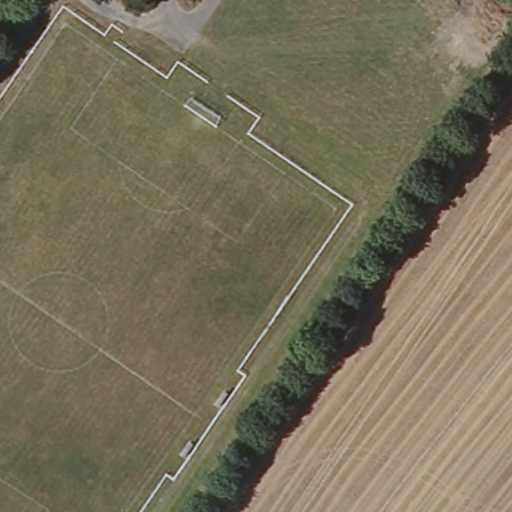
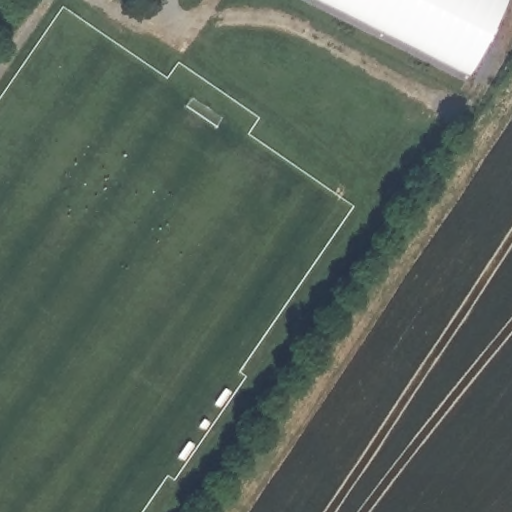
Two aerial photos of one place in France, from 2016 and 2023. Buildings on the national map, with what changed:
new [(469,75),(325,0),(507,0),(469,75)]

